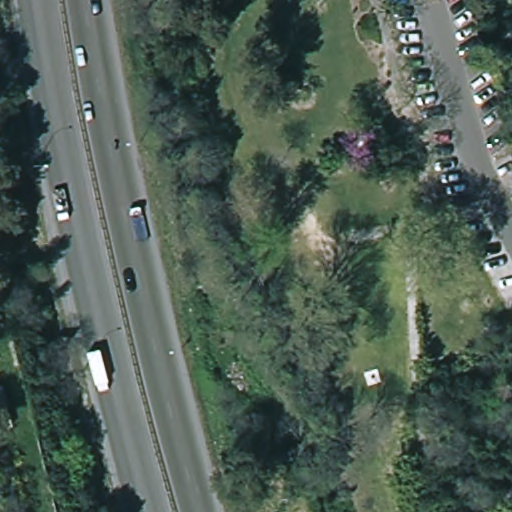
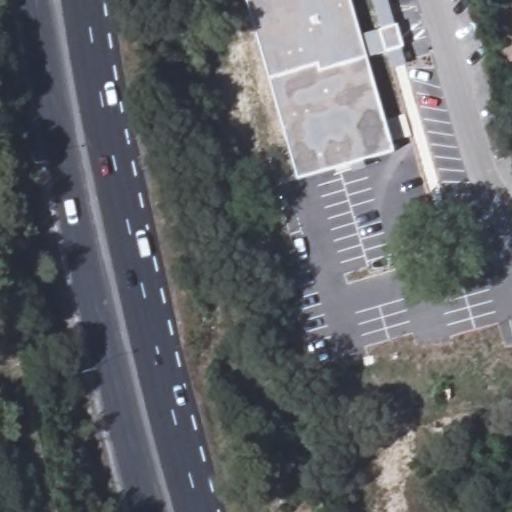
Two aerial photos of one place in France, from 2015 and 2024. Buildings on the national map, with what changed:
new [(362,36),(379,30),(383,29),(374,0),(388,0),(395,24),(398,24),(405,48),(401,49),(407,66),(394,70),(388,53),(368,59),(395,152),(298,181),(245,0),(351,0),(362,36)]

